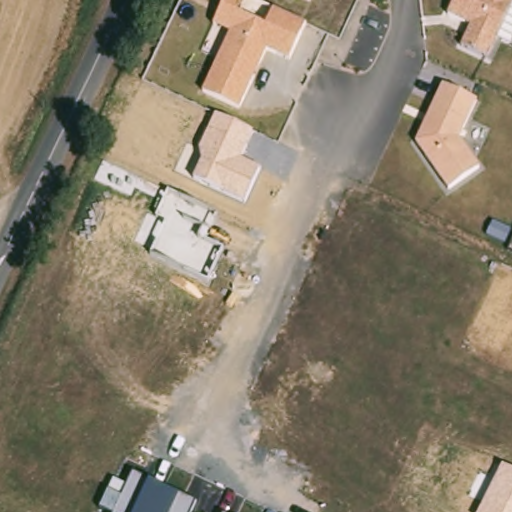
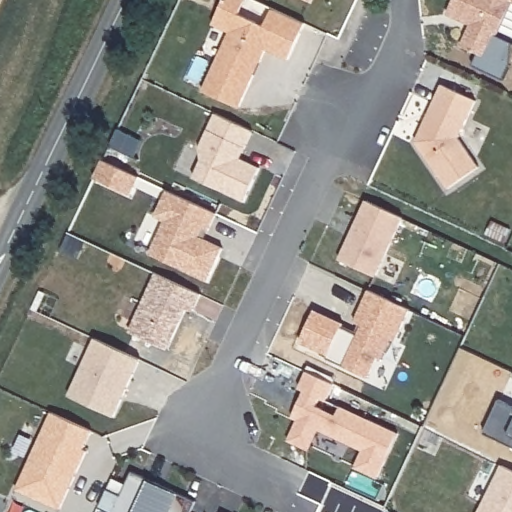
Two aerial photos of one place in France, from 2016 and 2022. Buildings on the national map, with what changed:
unchanged [(268,24),(275,8),(306,24),(290,60),(267,50),(240,107),(203,91),(230,31),(214,24),(227,0),(248,0),(244,14),(268,24)]
unchanged [(512,0),(512,5),(510,4),(486,58),(460,45),(469,24),(446,13),(453,0),(512,0)]
unchanged [(462,138),(480,167),(450,188),(417,143),(444,85),(480,100),(462,138)]
unchanged [(243,159),(261,168),(243,202),(192,177),(201,161),(198,149),(214,114),(255,134),(243,159)]
new [(135,197),(109,184),(100,180),(108,162),(117,166),(144,179),(135,197)]
unchanged [(215,213),(204,238),(224,247),(209,281),(149,255),(165,224),(155,219),(169,192),(215,213)]
new [(371,203),(407,220),(380,279),(343,262),(371,203)]
new [(161,275),(205,296),(197,314),(191,311),(171,352),(133,334),(161,275)]
new [(348,326),(347,328),(360,334),(364,327),(360,324),(374,293),(415,312),(400,344),(396,342),(387,362),(382,360),(373,381),(331,361),(332,358),(305,344),(320,313),(348,326)]
new [(140,360),(114,417),(69,396),(94,339),(140,360)]
new [(355,469),(363,450),(318,431),(309,451),(287,442),(296,421),(291,419),(305,391),(297,388),(305,371),(336,384),(328,399),(399,433),(377,479),(355,469)]
new [(488,437),(504,403),(512,407),(512,448),(488,437)]
new [(67,419),(96,432),(87,451),(90,452),(62,511),(31,496),(67,419)]
unchanged [(500,467),(512,473),(512,512),(478,512),(500,467)]
unchanged [(126,485),(132,472),(195,502),(192,512),(110,512),(100,507),(107,490),(114,478),(126,485)]

